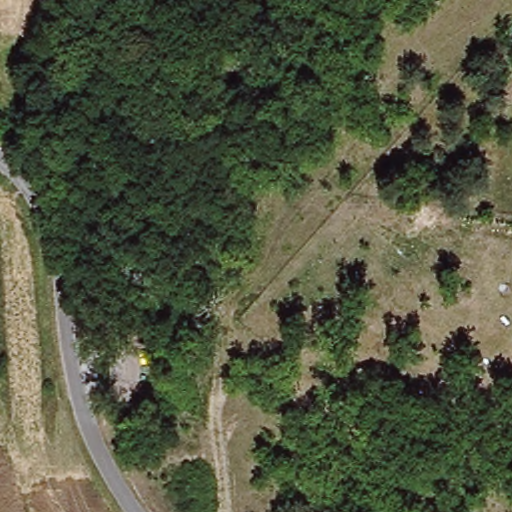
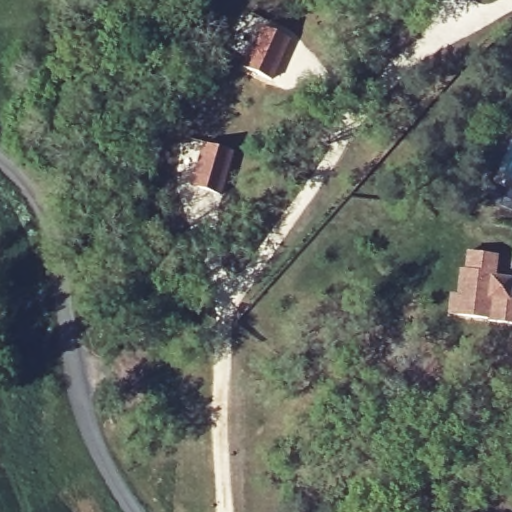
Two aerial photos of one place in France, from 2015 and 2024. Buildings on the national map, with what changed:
new [(272,80),(243,67),(261,26),(289,41),(272,80)]
new [(221,195),(190,185),(203,142),(233,153),(221,195)]
new [(461,297),(464,271),(468,272),(470,253),(497,256),(495,281),(512,282),(510,298),(512,299),(512,325),(492,322),(492,321),(459,317),(452,317),(454,296),(461,297)]

